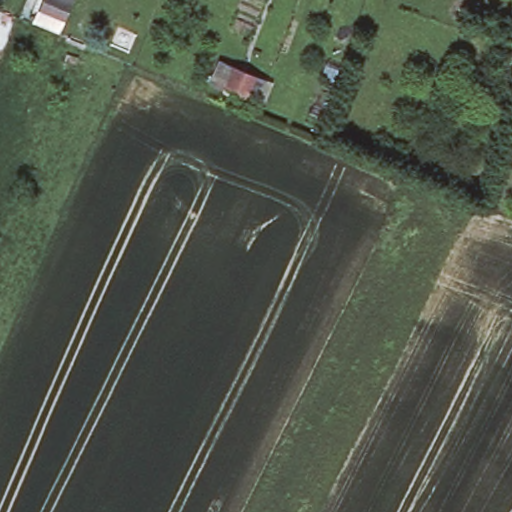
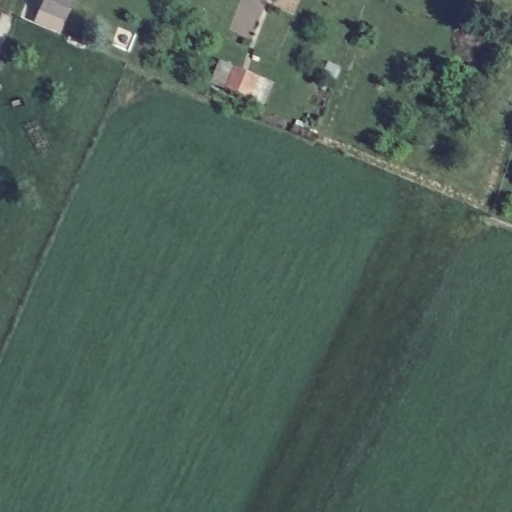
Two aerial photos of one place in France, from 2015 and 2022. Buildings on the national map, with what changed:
unchanged [(42,0),(70,0),(68,4),(63,16),(40,5),(42,0)]
unchanged [(248,97),(213,82),(221,62),(256,77),(248,97)]

